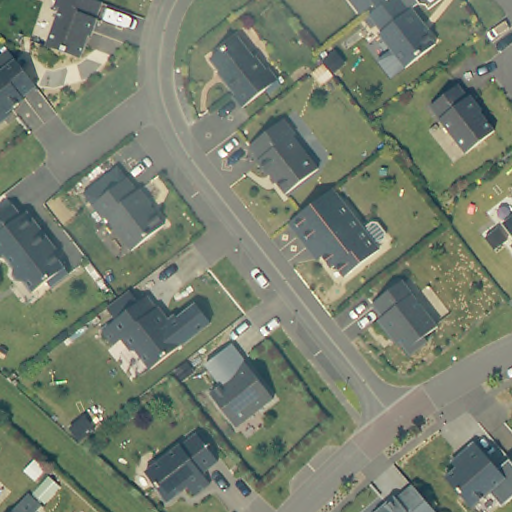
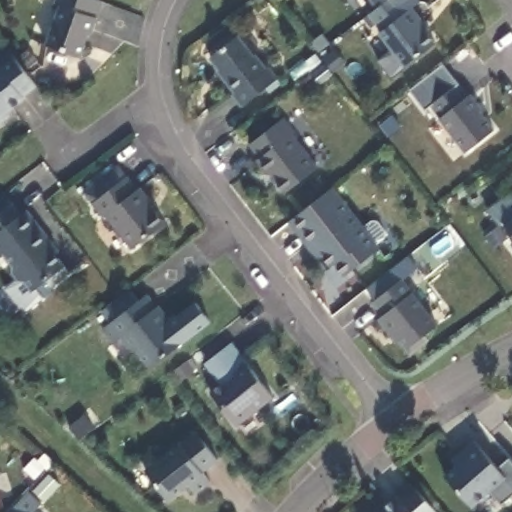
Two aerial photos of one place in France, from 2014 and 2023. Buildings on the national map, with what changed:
unchanged [(91,15),(86,32),(83,31),(75,55),(40,42),(54,3),(49,1),(49,0),(96,0),(91,15)]
unchanged [(376,5),(382,0),(402,0),(408,6),(410,5),(421,19),(418,20),(434,40),(403,64),(377,30),(380,28),(367,11),(376,5)]
unchanged [(376,5),(372,0),(382,0),(376,5)]
unchanged [(247,54),(249,52),(259,65),(262,64),(271,75),(235,103),(226,91),(229,90),(212,68),(213,66),(204,55),(231,33),(247,54)]
unchanged [(35,82),(21,93),(24,95),(1,112),(4,115),(0,119),(0,65),(1,66),(15,56),(25,69),(35,82)]
unchanged [(466,98),(468,96),(479,110),(478,112),(493,131),(463,154),(437,120),(438,120),(428,107),(456,85),(466,98)]
unchanged [(289,129),(286,131),(312,164),(279,190),(263,170),(261,171),(250,157),(253,155),(243,141),(277,115),(289,129)]
unchanged [(136,186),(139,185),(150,199),(148,200),(163,220),(130,245),(105,213),(102,215),(91,200),(126,174),(136,186)]
unchanged [(325,185),(372,245),(338,271),(329,260),(325,262),(306,239),(302,242),(283,217),(325,185)]
unchanged [(212,210),(203,217),(196,206),(204,201),(212,210)]
unchanged [(17,215),(30,230),(36,231),(43,240),(41,246),(63,274),(46,287),(41,282),(27,292),(19,282),(13,281),(7,274),(8,267),(0,258),(0,211),(6,205),(15,216),(17,215)]
unchanged [(501,215),(512,206),(512,230),(501,215)]
unchanged [(509,235),(512,233),(512,240),(509,235)]
unchanged [(435,326),(422,336),(426,341),(408,355),(394,336),(391,338),(376,320),(381,317),(370,303),(400,281),(435,326)]
unchanged [(140,291),(150,304),(151,302),(165,320),(164,325),(175,340),(145,363),(131,346),(125,345),(116,333),(108,340),(96,325),(140,291)]
unchanged [(272,398),(235,427),(209,393),(232,375),(228,370),(242,360),(272,398)]
unchanged [(179,440),(195,428),(216,455),(201,467),(209,478),(194,490),(187,480),(166,496),(144,466),(179,440)]
unchanged [(443,477),(454,467),(451,464),(461,455),(459,453),(472,442),(503,477),(469,507),(443,477)]
unchanged [(44,489),(36,500),(39,503),(32,512),(5,512),(33,479),(44,489)]
unchanged [(434,512),(374,512),(392,496),(395,498),(410,485),(419,495),(434,512)]

